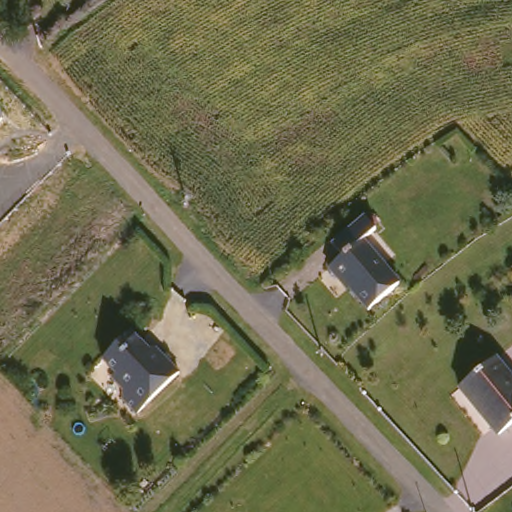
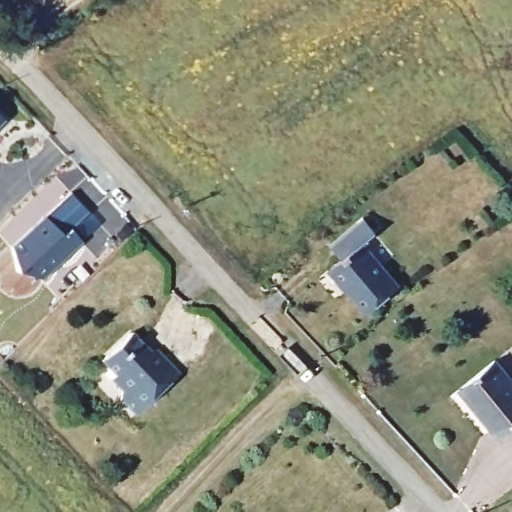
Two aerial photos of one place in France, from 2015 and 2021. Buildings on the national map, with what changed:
unchanged [(0,121),(0,116),(3,118),(0,121)]
new [(89,212),(71,230),(82,242),(41,279),(16,272),(11,249),(43,218),(70,194),(89,212)]
unchanged [(339,259),(328,246),(361,218),(372,232),(359,243),(396,286),(365,312),(341,284),(339,286),(326,271),(339,259)]
unchanged [(136,414),(121,399),(111,379),(116,375),(102,361),(131,333),(155,358),(159,354),(178,374),(136,414)]
unchanged [(491,356),(512,376),(512,420),(501,432),(460,392),(491,356)]

